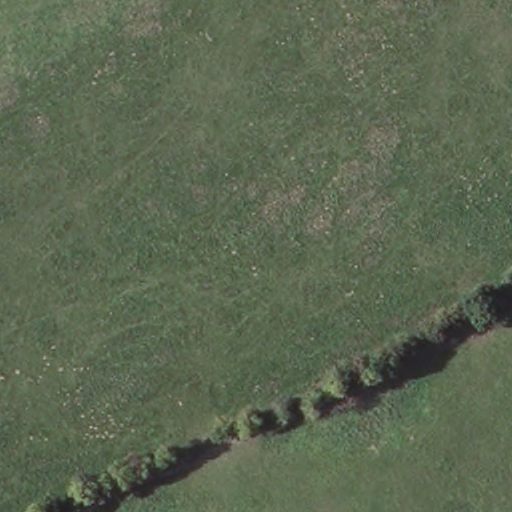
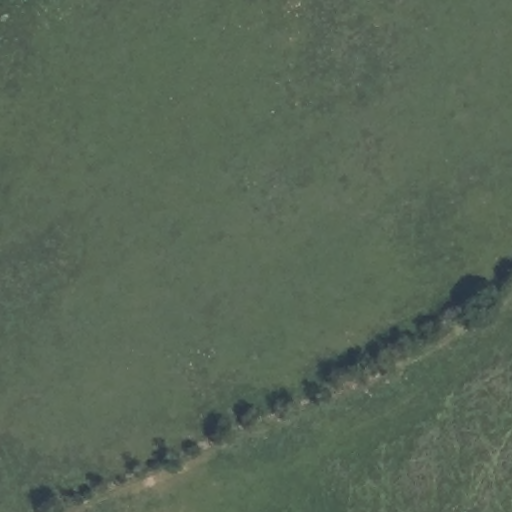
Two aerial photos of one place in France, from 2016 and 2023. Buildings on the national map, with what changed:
[]

